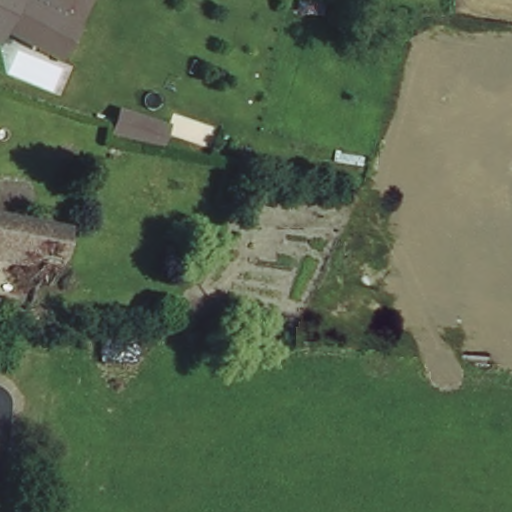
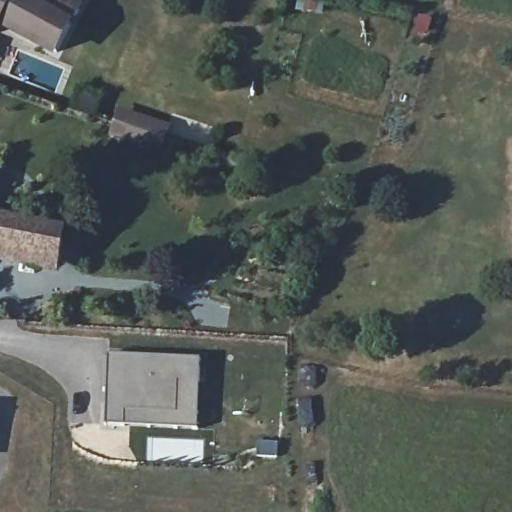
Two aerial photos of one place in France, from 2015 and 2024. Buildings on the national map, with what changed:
unchanged [(85,0),(56,55),(0,26),(0,0),(85,0)]
new [(172,125),(163,150),(111,132),(119,107),(172,125)]
unchanged [(86,267),(0,252),(0,215),(93,232),(86,267)]
new [(200,360),(195,427),(106,423),(108,355),(200,360)]

